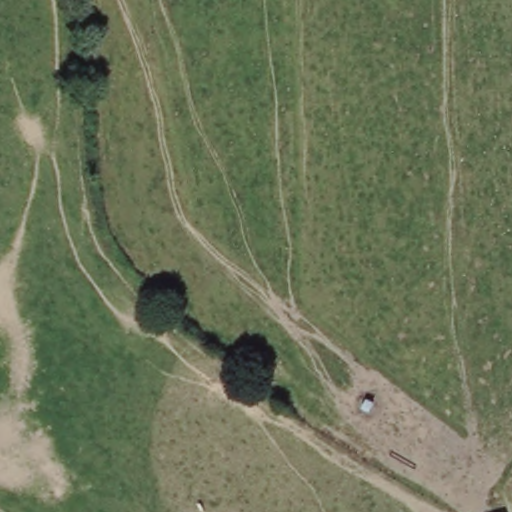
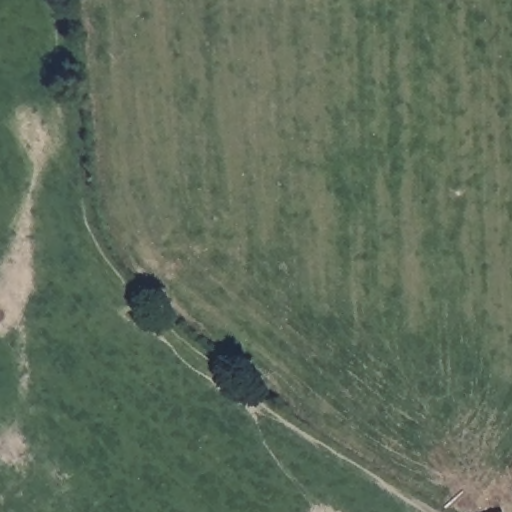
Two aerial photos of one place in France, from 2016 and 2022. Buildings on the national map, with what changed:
unchanged [(510,512),(507,512),(510,511),(510,512)]

